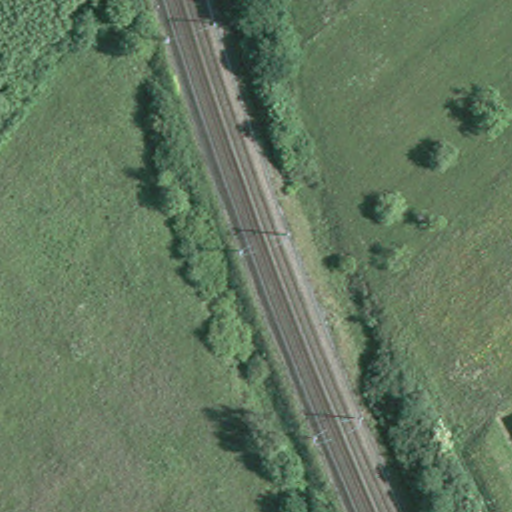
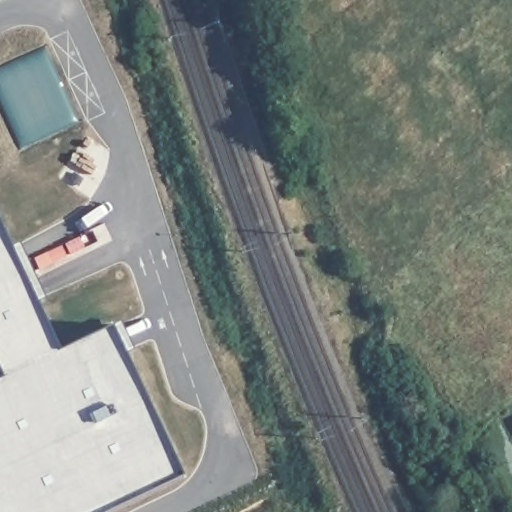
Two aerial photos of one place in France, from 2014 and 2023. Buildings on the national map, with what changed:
new [(112,326),(182,476),(106,512),(0,512),(0,226),(59,350),(112,326)]

